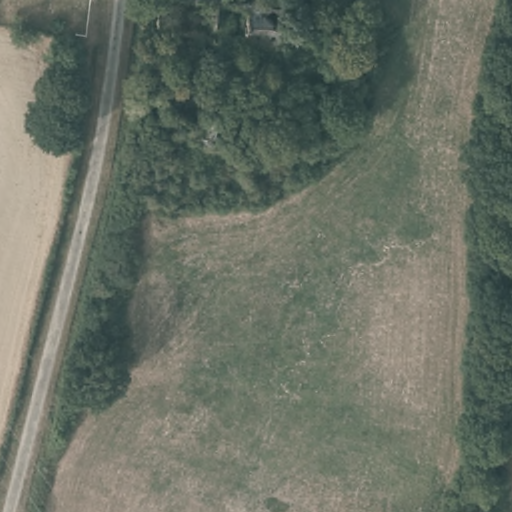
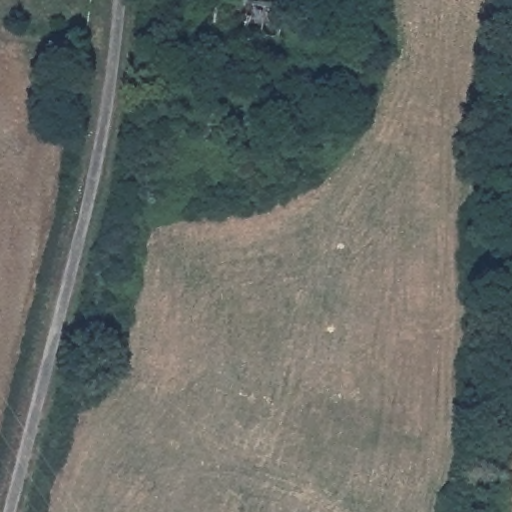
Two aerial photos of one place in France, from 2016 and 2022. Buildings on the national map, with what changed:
unchanged [(221,0),(276,0),(276,1),(270,38),(219,33),(221,0)]
unchanged [(303,41),(270,38),(276,1),(305,3),(303,41)]
unchanged [(340,85),(339,85),(338,86),(337,87),(336,88),(335,88),(334,88),(333,88),(332,89),(331,88),(330,88),(328,88),(327,88),(327,87),(326,86),(325,86),(325,85),(324,85),(323,84),(323,83),(322,82),(322,81),(322,80),(322,79),(322,78),(322,77),(322,76),(322,75),(323,75),(323,73),(324,73),(325,72),(326,71),(327,70),(328,70),(330,69),(331,69),(332,69),(333,69),(334,69),(335,69),(336,70),(337,70),(338,71),(338,72),(340,73),(340,74),(341,74),(341,75),(341,76),(342,76),(342,77),(342,78),(342,79),(342,80),(342,81),(341,81),(341,82),(341,83),(341,84),(340,84),(340,85)]
unchanged [(250,144),(209,134),(214,119),(237,126),(239,105),(255,107),(254,112),(250,144)]

